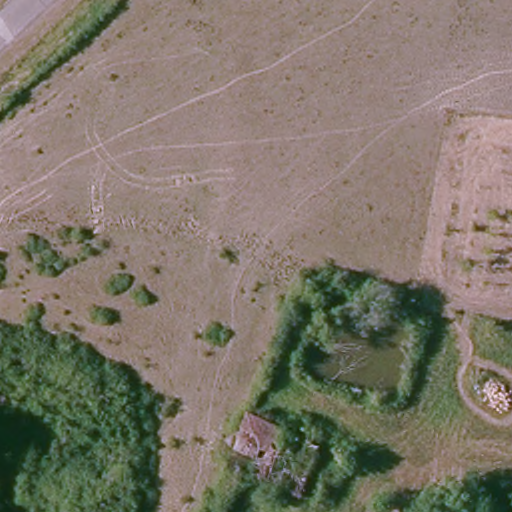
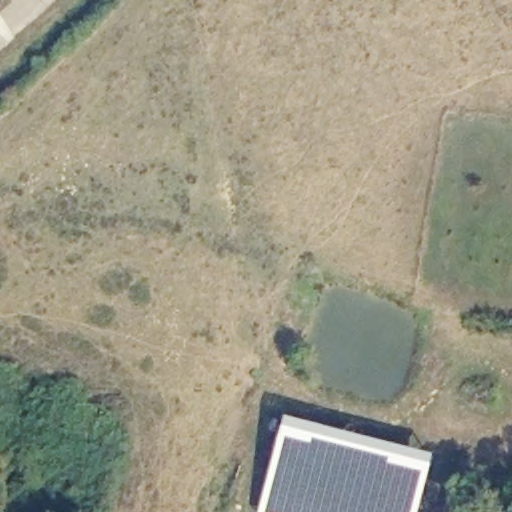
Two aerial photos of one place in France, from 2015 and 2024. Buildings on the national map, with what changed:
demolished [(290,431),(293,421),(317,430),(314,437),(346,450),(327,498),(235,465),(223,461),(242,412),(290,431)]
new [(281,416),(431,453),(415,512),(257,512),(281,416)]

